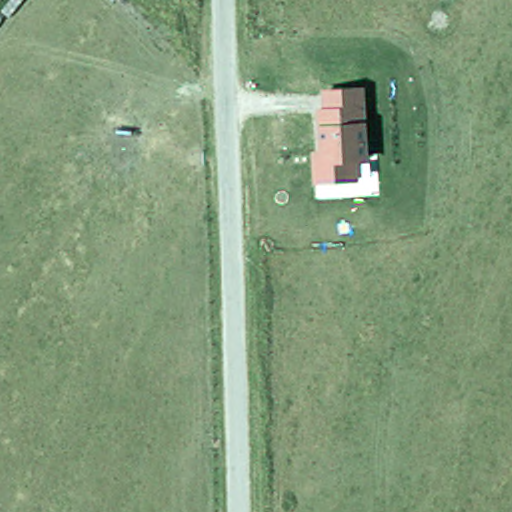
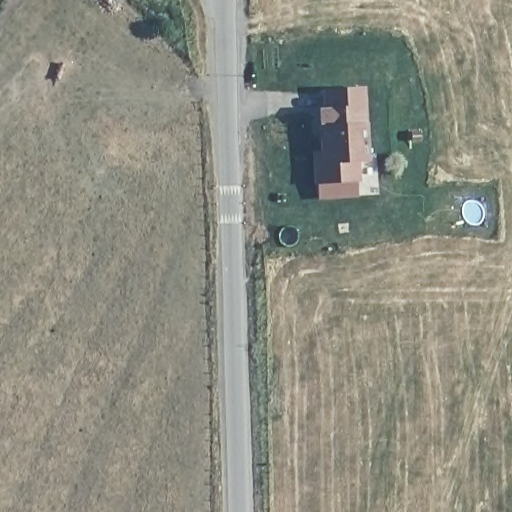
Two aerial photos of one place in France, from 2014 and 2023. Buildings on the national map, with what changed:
unchanged [(365,89),(366,120),(368,120),(370,156),(368,157),(368,175),(359,176),(360,183),(313,184),(312,150),(321,149),(318,106),(322,106),(321,90),(365,89)]

